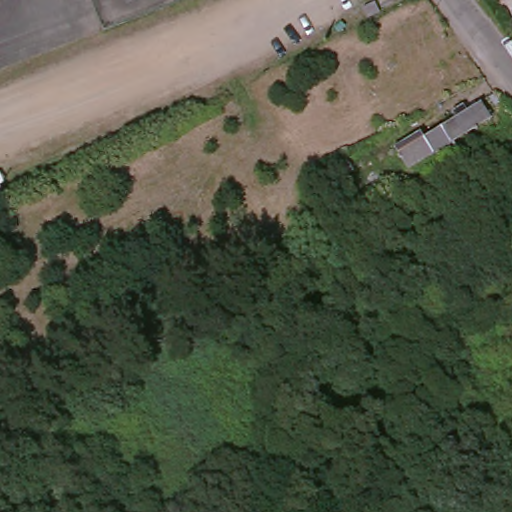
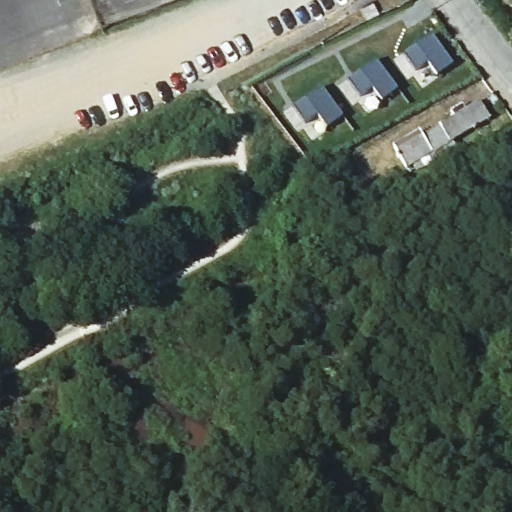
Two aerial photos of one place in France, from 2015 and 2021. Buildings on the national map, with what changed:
new [(434,34),(453,64),(436,76),(428,65),(417,72),(404,53),(434,34)]
demolished [(384,50),(370,56),(366,44),(380,39),(384,50)]
new [(379,61),(399,91),(384,101),(374,88),(361,98),(349,80),(379,61)]
new [(319,116),(306,125),(294,108),(324,87),(344,117),(327,127),(319,116)]
unchanged [(426,137),(479,112),(488,129),(433,156),(432,153),(404,167),(393,142),(422,129),(426,137)]

